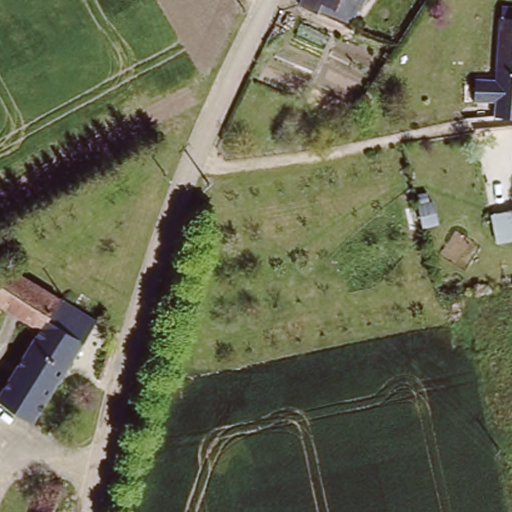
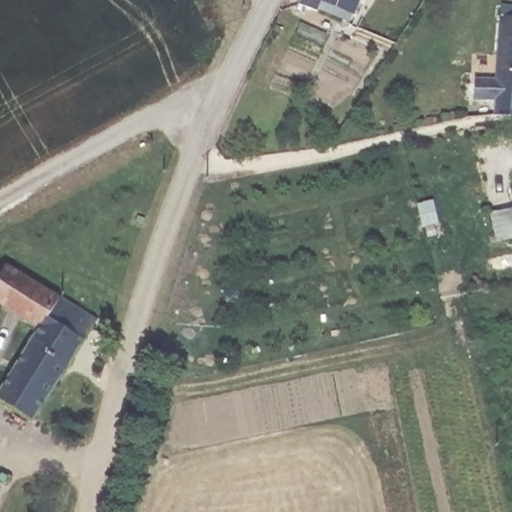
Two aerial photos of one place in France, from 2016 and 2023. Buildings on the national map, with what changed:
unchanged [(337,20),(310,12),(308,20),(285,12),(292,0),(346,0),(337,20)]
unchanged [(491,115),(491,104),(455,104),(455,87),(464,88),(465,82),(472,83),(472,78),(492,78),(495,10),(510,10),(510,20),(512,20),(512,115),(491,115)]
unchanged [(491,209),(512,206),(512,240),(500,242),(491,209)]
unchanged [(90,318),(29,420),(0,402),(0,389),(35,326),(0,306),(0,269),(0,268),(1,268),(90,318)]

